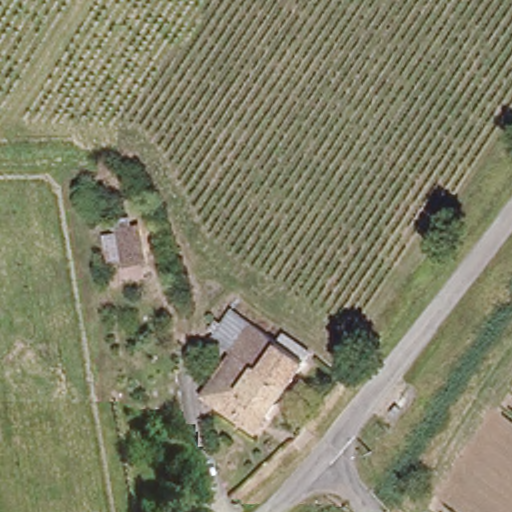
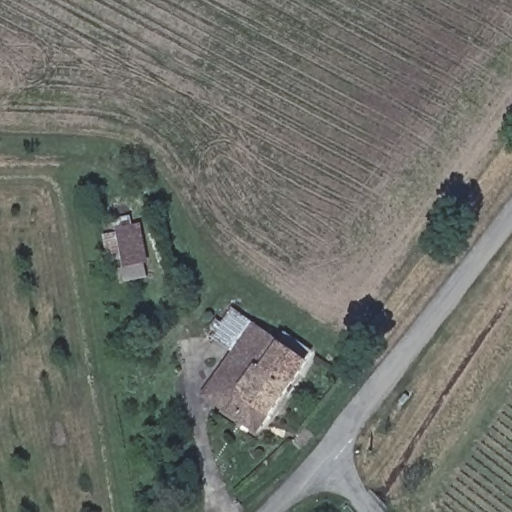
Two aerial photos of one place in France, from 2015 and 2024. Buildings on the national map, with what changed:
unchanged [(124,281),(117,261),(99,264),(93,234),(138,223),(148,278),(124,281)]
unchanged [(234,423),(248,404),(220,383),(237,359),(216,342),(235,317),(287,350),(291,343),(311,356),(267,418),(254,437),(234,423)]

